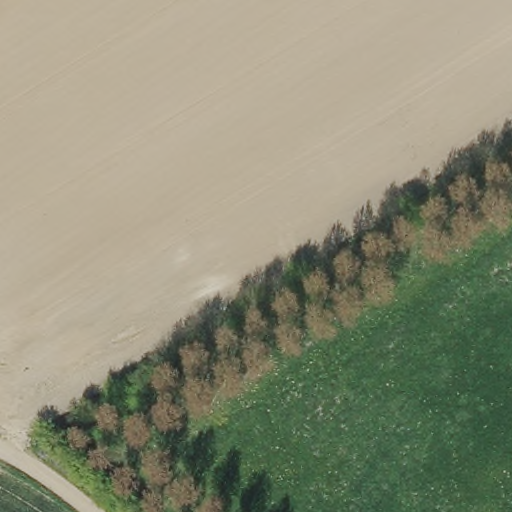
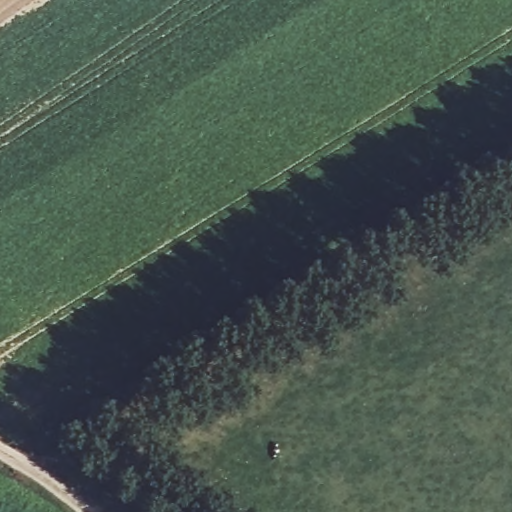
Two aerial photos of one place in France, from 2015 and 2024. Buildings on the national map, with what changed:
[]

